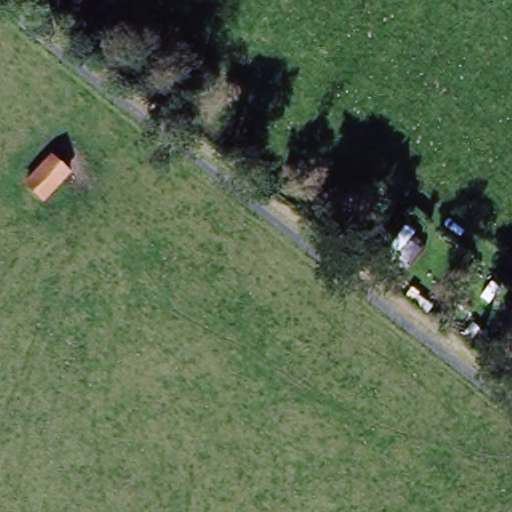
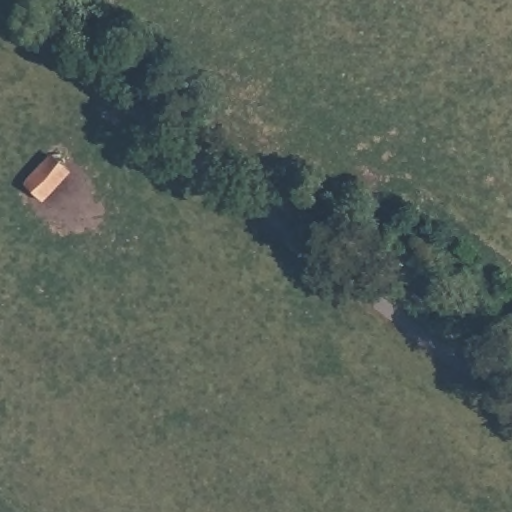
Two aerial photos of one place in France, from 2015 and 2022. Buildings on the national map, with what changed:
unchanged [(67,170),(40,198),(26,185),(53,157),(67,170)]
unchanged [(390,233),(402,219),(423,233),(408,251),(390,233)]
unchanged [(512,316),(512,319),(484,349),(466,334),(492,302),(503,310),(512,316)]

